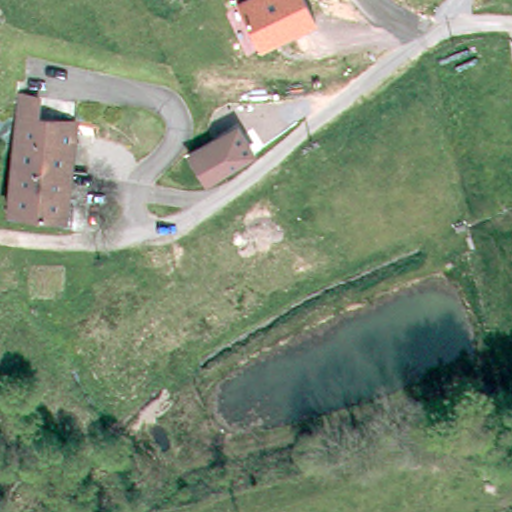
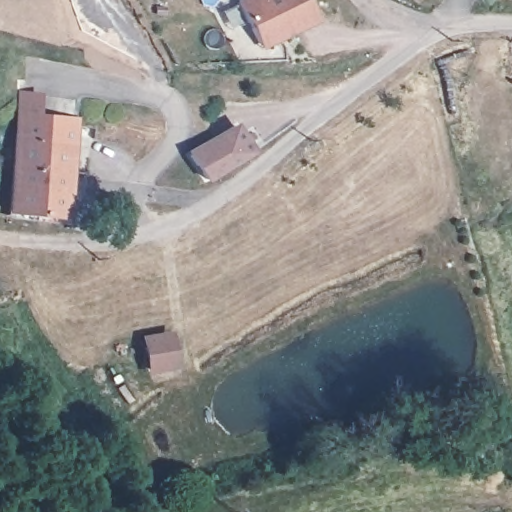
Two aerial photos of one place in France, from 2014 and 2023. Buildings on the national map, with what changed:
unchanged [(317,21),(260,47),(237,0),(307,0),(317,21)]
unchanged [(14,121),(68,124),(68,121),(101,123),(100,135),(67,134),(61,220),(9,218),(14,121)]
unchanged [(209,181),(193,155),(236,127),(252,153),(209,181)]
new [(140,336),(173,330),(178,367),(144,372),(140,336)]
unchanged [(489,490),(489,482),(500,482),(500,490),(489,490)]

